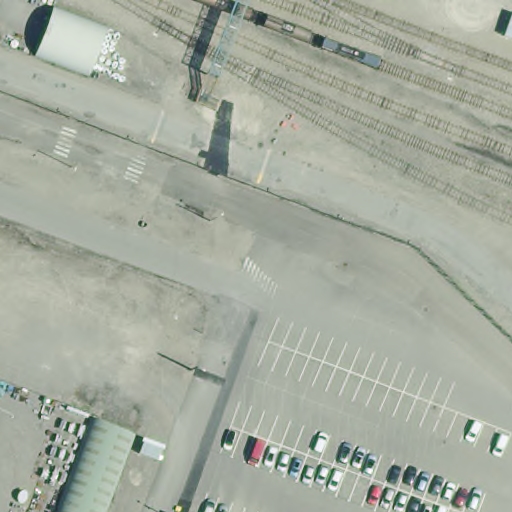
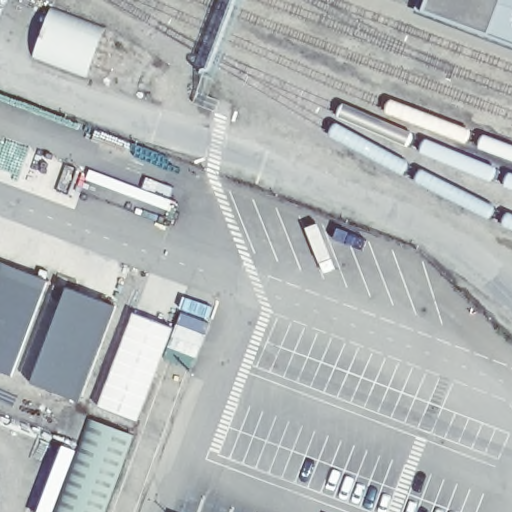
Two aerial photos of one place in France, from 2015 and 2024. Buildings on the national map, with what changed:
new [(427,0),(512,0),(512,45),(423,11),(427,0)]
unchanged [(89,75),(33,56),(50,10),(105,30),(89,75)]
new [(12,377),(0,373),(0,263),(47,280),(12,377)]
new [(80,403),(30,385),(66,289),(117,307),(80,403)]
new [(172,328),(138,421),(98,406),(133,313),(172,328)]
unchanged [(90,416),(140,431),(111,512),(55,512),(90,416)]

